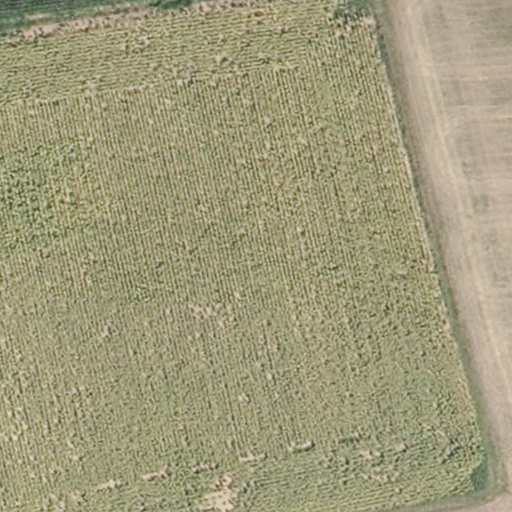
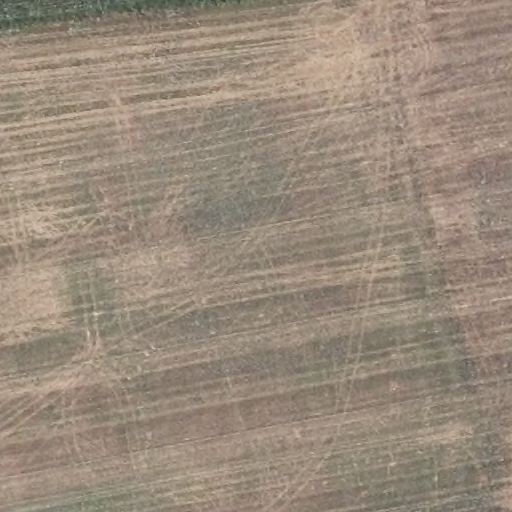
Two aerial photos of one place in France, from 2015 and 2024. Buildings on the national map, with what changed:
[]

